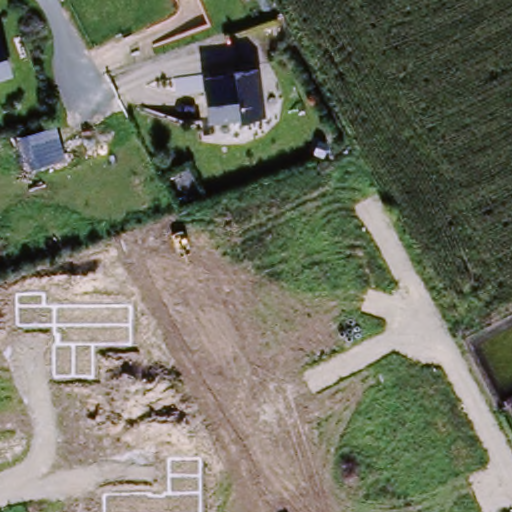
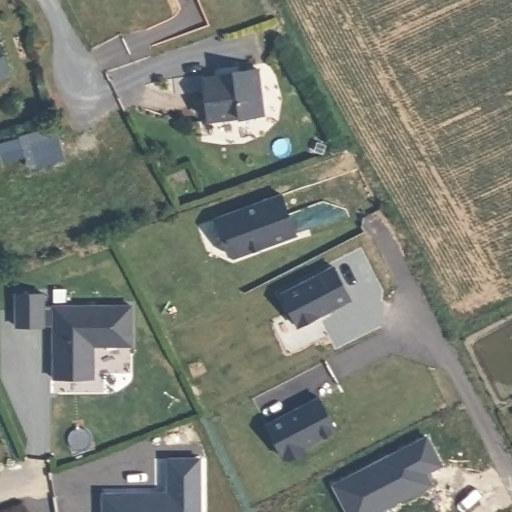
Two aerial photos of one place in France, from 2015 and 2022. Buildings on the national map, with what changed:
unchanged [(16,75),(0,81),(0,39),(16,75)]
unchanged [(266,120),(204,127),(200,80),(261,72),(266,120)]
new [(282,193),(298,236),(229,260),(214,217),(282,193)]
new [(330,270),(346,302),(294,330),(277,298),(330,270)]
new [(44,293),(45,306),(133,305),(133,346),(93,346),(95,378),(52,378),(52,326),(14,326),(12,294),(44,293)]
new [(321,398),(338,430),(306,447),(305,452),(292,459),(287,457),(270,426),(321,398)]
new [(200,458),(201,512),(102,512),(101,492),(167,491),(166,458),(200,458)]

